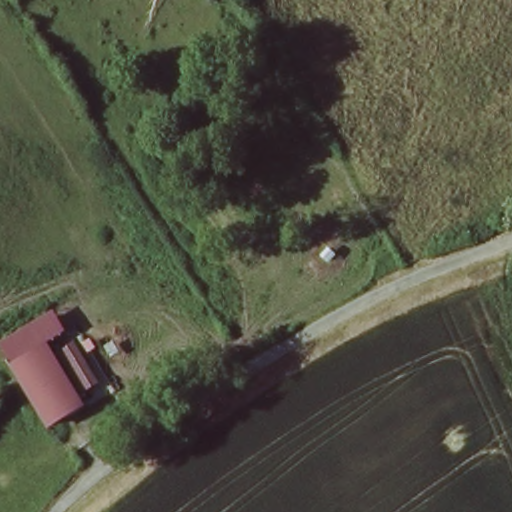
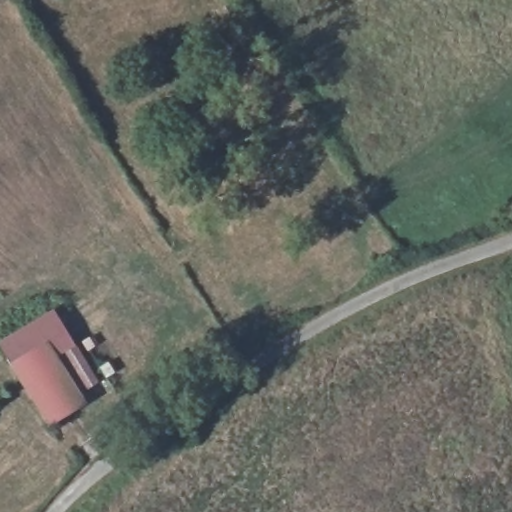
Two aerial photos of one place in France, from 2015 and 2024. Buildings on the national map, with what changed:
unchanged [(49,339),(56,351),(73,339),(108,393),(91,404),(48,428),(10,361),(49,339)]

